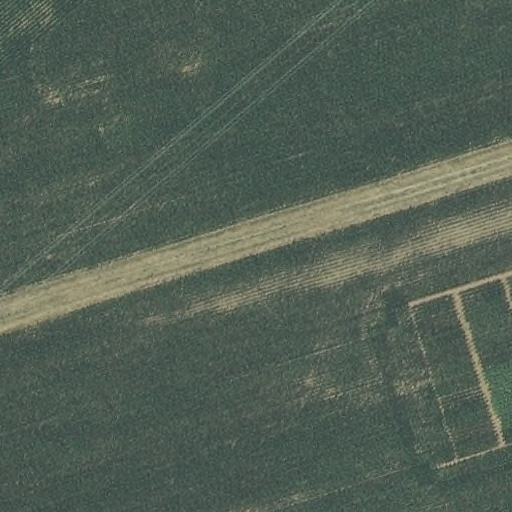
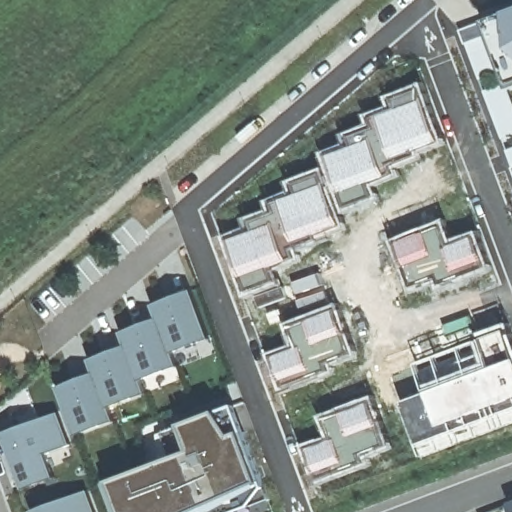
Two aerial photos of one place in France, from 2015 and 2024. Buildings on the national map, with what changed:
new [(512,89),(510,90),(512,95),(512,136),(503,139),(460,31),(512,11),(512,89)]
new [(323,156),(346,147),(342,136),(368,127),(365,117),(390,108),(387,98),(422,86),(445,144),(419,153),(422,158),(395,169),(399,175),(370,186),(377,201),(345,212),(323,156)]
new [(512,164),(507,151),(512,149),(512,164)]
new [(247,227),(245,220),(269,212),(267,203),(292,194),(288,185),(323,171),(345,229),(296,246),(302,263),(276,271),(281,285),(245,298),(239,280),(224,237),(247,227)]
new [(445,221),(452,242),(478,233),(492,270),(442,286),(439,278),(410,287),(390,240),(445,221)]
new [(95,374),(90,360),(126,347),(122,333),(157,319),(153,306),(192,290),(211,339),(175,353),(179,367),(143,381),(147,394),(112,408),(116,422),(77,436),(58,388),(95,374)]
new [(340,306),(359,359),(332,369),(335,376),(282,392),(267,353),(292,345),(285,326),(340,306)]
new [(512,413),(420,447),(402,401),(491,370),(484,336),(507,330),(512,349),(512,413)]
new [(374,398),(390,447),(364,457),(367,465),(315,484),(302,449),(327,439),(319,418),(374,398)]
new [(159,435),(235,406),(271,500),(269,500),(265,489),(202,512),(117,512),(106,484),(160,464),(159,435)]
new [(60,413),(72,445),(47,454),(55,477),(24,489),(5,434),(60,413)]
new [(97,512),(33,512),(89,491),(97,512)]
new [(512,509),(510,505),(512,504),(512,509)]

